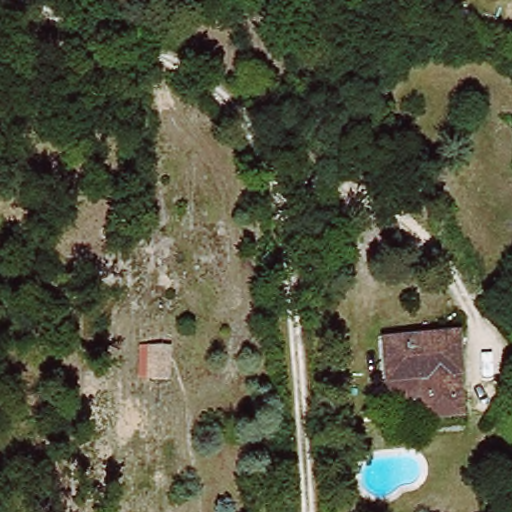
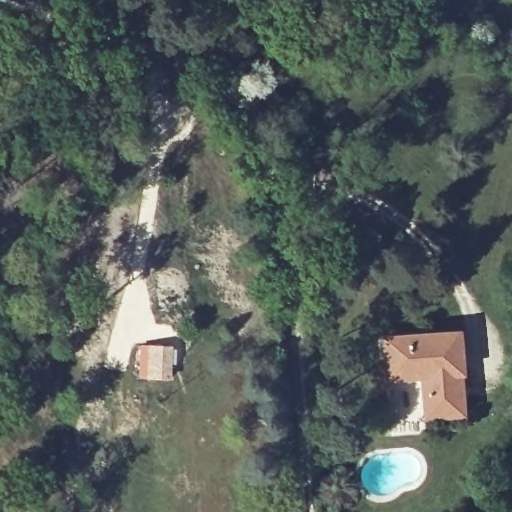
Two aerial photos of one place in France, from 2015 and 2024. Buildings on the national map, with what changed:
unchanged [(187,324),(184,357),(169,357),(172,324),(187,324)]
unchanged [(428,428),(424,393),(393,393),(390,339),(458,336),(465,425),(428,428)]

